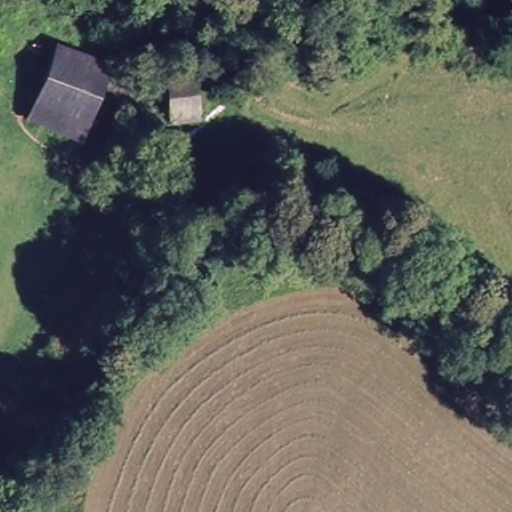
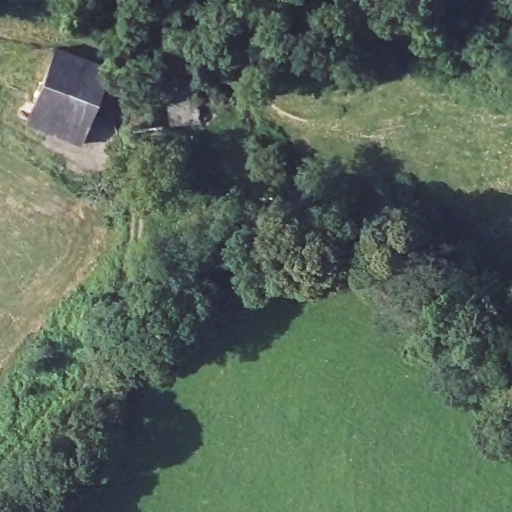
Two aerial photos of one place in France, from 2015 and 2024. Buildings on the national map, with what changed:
unchanged [(85,139),(82,150),(72,145),(75,136),(27,120),(53,49),(92,63),(95,54),(113,58),(85,139)]
unchanged [(176,123),(168,82),(193,78),(201,119),(176,123)]

